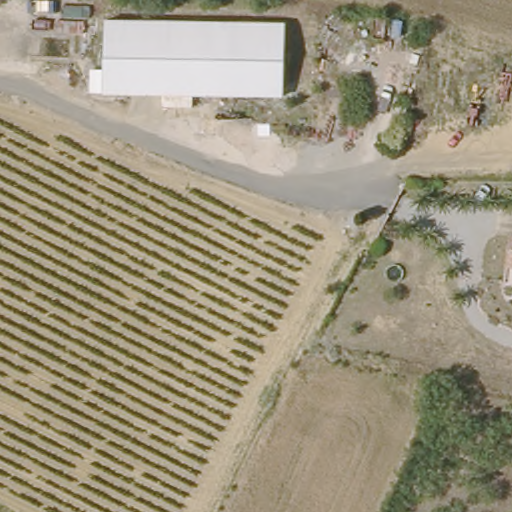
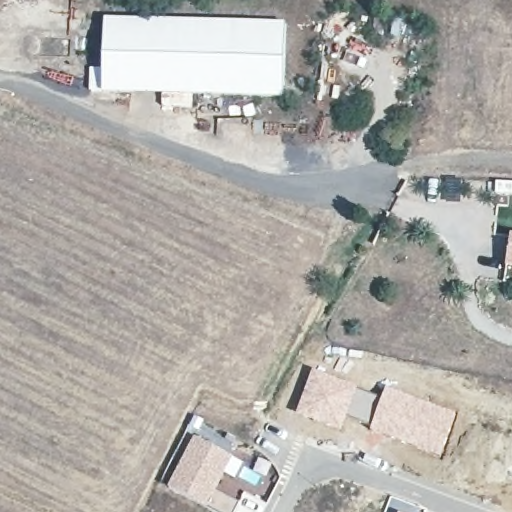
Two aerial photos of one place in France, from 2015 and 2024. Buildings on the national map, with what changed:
unchanged [(285,24),(283,96),(102,93),(103,21),(285,24)]
unchanged [(501,241),(512,242),(512,272),(497,270),(501,241)]
new [(346,417),(341,431),(295,413),(312,369),(357,388),(380,398),(385,387),(455,413),(439,457),(369,429),(370,426),(346,417)]
new [(207,508),(168,487),(194,437),(232,457),(214,491),(238,504),(235,512),(215,512),(207,508)]

